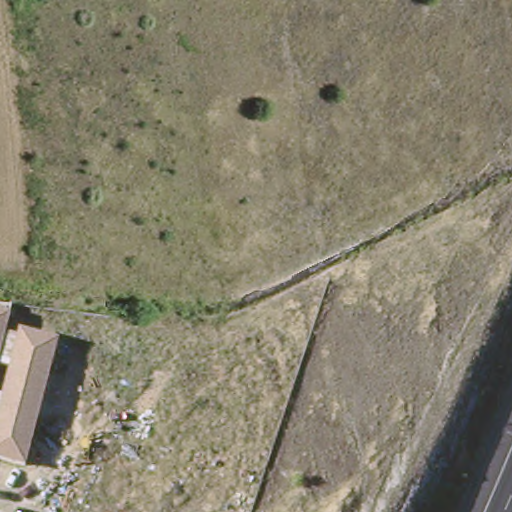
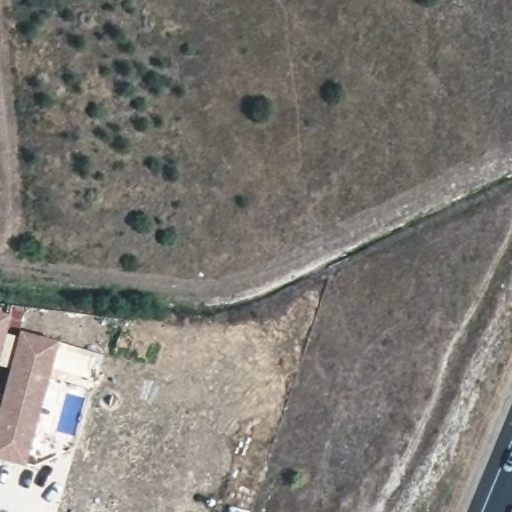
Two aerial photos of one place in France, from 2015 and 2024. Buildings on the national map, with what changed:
unchanged [(0,457),(0,391),(3,391),(10,364),(0,362),(0,308),(11,311),(6,330),(18,333),(20,328),(58,339),(48,375),(28,449),(25,463),(0,457)]

